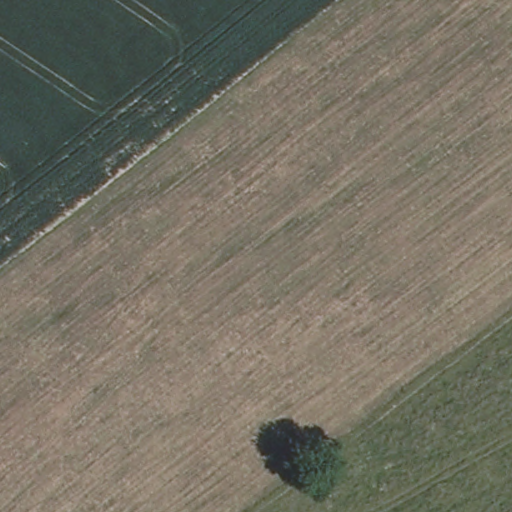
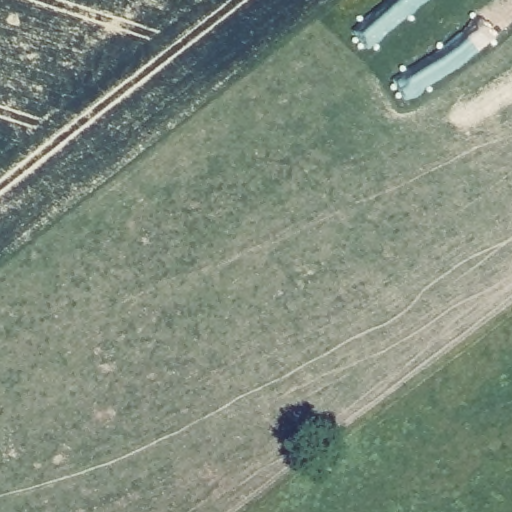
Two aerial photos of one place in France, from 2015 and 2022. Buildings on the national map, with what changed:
[]

